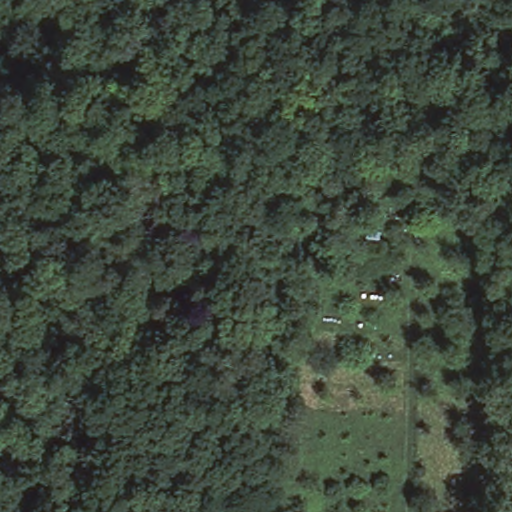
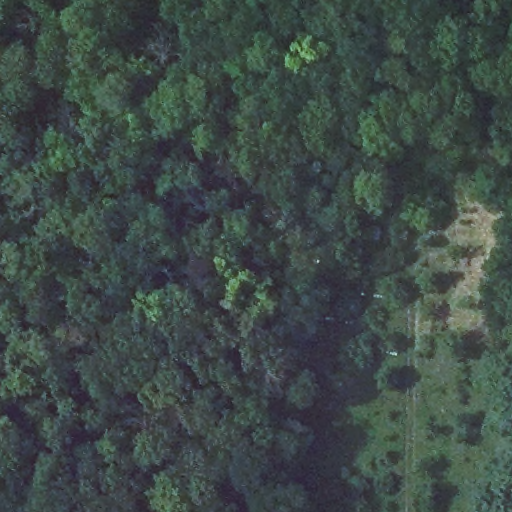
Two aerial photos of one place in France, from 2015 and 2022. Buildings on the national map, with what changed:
unchanged [(417,206),(417,231),(388,231),(388,209),(417,206)]

